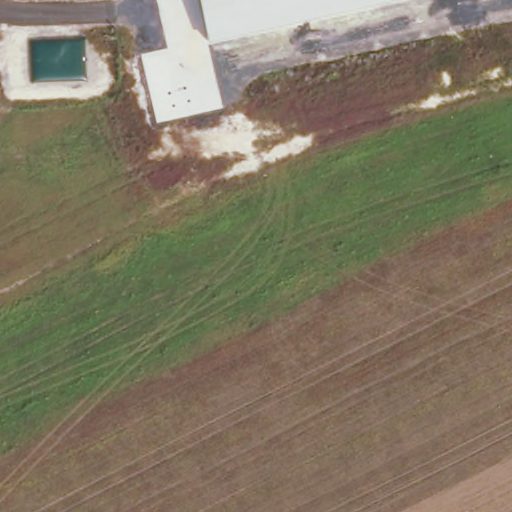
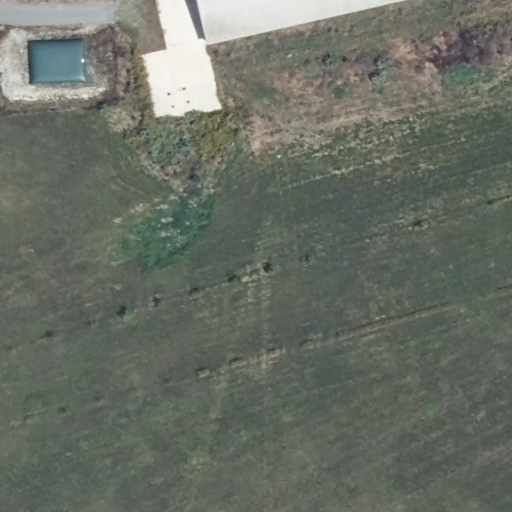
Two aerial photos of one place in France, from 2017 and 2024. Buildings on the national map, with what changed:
unchanged [(197,0),(415,0),(208,48),(197,0)]

